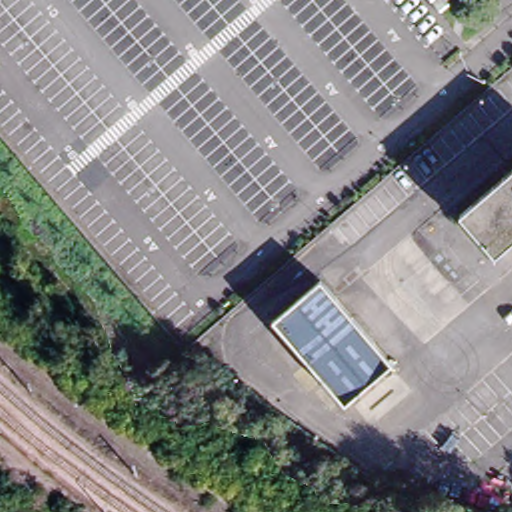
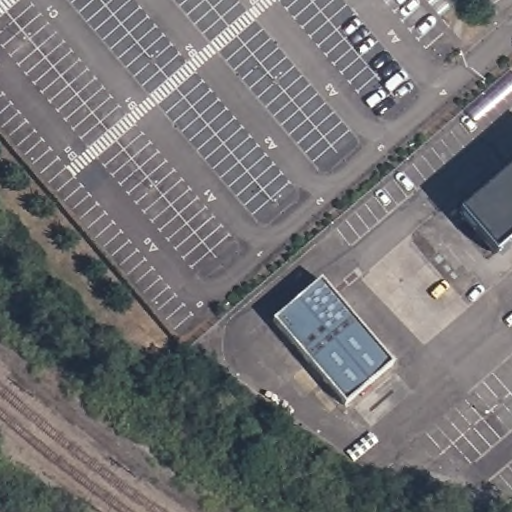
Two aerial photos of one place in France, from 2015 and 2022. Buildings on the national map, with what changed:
unchanged [(494,254),(461,214),(512,168),(512,239),(494,254)]
unchanged [(392,364),(344,405),(274,322),(321,281),(392,364)]

